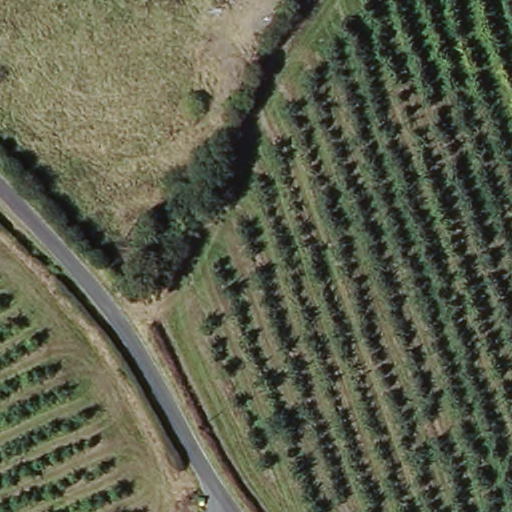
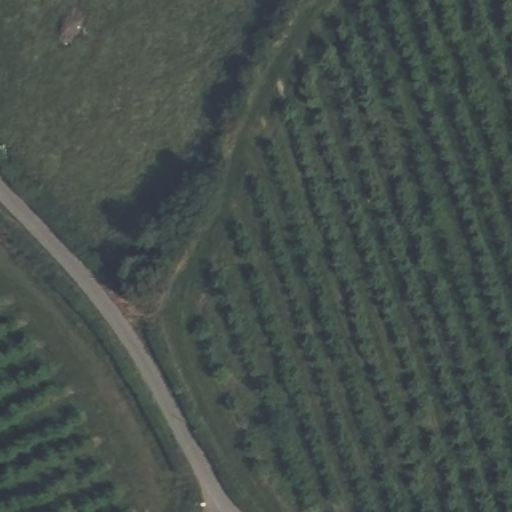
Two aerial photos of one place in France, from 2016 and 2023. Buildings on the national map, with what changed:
[]

